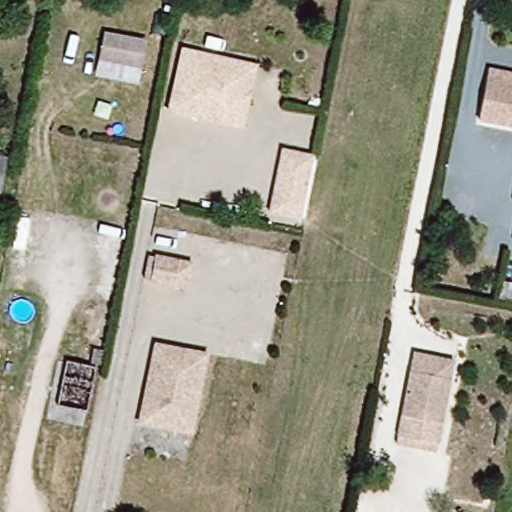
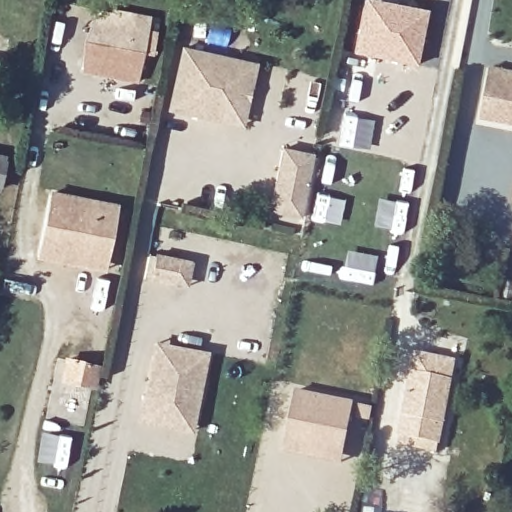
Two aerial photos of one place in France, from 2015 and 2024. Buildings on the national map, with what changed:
new [(364,0),(367,0),(425,11),(415,66),(354,52),(364,0)]
new [(147,38),(140,84),(95,76),(104,29),(147,38)]
unchanged [(242,129),(227,126),(167,115),(179,53),(239,65),(254,68),(242,129)]
unchanged [(475,118),(481,80),(485,69),(512,75),(512,127),(475,118)]
unchanged [(265,214),(267,200),(280,151),(309,156),(298,206),(297,219),(265,214)]
unchanged [(0,175),(0,155),(4,156),(0,175)]
unchanged [(510,201),(512,185),(512,202),(510,201)]
new [(117,205),(105,272),(35,259),(49,191),(117,205)]
unchanged [(182,285),(171,282),(146,278),(150,254),(175,258),(187,259),(182,285)]
unchanged [(141,425),(144,411),(152,360),(155,347),(187,354),(207,357),(194,422),(193,435),(141,425)]
unchanged [(399,443),(412,372),(414,353),(452,358),(450,376),(438,451),(399,443)]
unchanged [(92,368),(84,412),(54,407),(62,364),(92,368)]
new [(291,392),(349,404),(340,453),(337,463),(278,451),(281,441),(291,392)]

